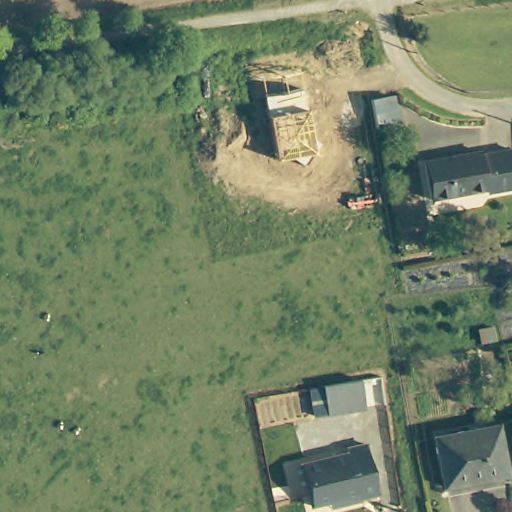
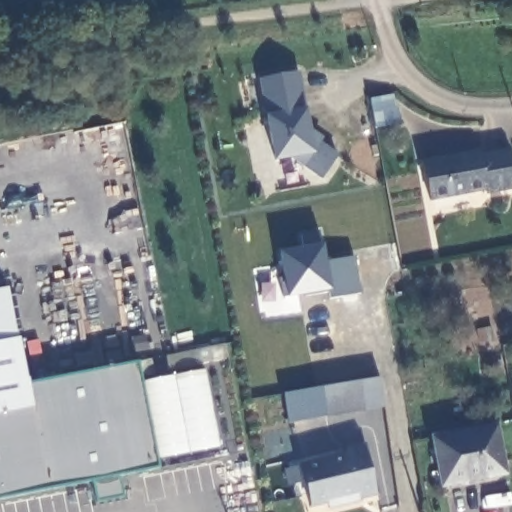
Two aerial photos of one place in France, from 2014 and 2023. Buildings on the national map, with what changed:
unchanged [(266,96),(263,78),(301,71),(304,89),(307,109),(312,139),(322,145),(307,167),(292,156),(277,159),(269,117),(266,96)]
unchanged [(382,100),(400,96),(403,111),(408,110),(411,127),(386,130),(382,100)]
unchanged [(476,155),(510,148),(512,158),(512,187),(481,192),(480,189),(431,199),(422,159),(475,150),(476,155)]
new [(142,380),(156,455),(158,466),(119,474),(124,495),(96,501),(91,479),(0,498),(0,342),(20,338),(30,381),(138,361),(142,380)]
new [(211,370),(225,444),(162,456),(149,381),(211,370)]
unchanged [(332,417),(329,388),(366,383),(370,412),(332,417)]
unchanged [(494,424),(502,474),(437,482),(429,433),(494,424)]
unchanged [(348,451),(347,446),(365,443),(378,492),(358,497),(358,499),(341,502),(339,496),(310,503),(301,462),(348,451)]

